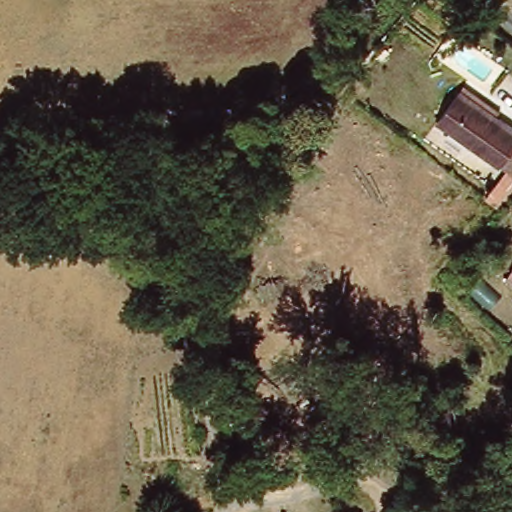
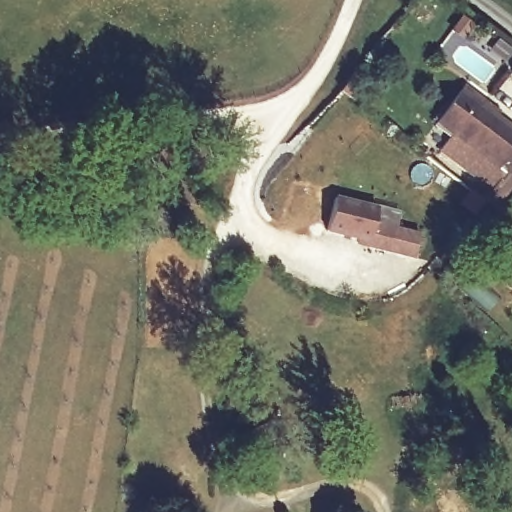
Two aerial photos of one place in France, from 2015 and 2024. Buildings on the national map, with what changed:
unchanged [(439,126),(467,87),(479,98),(475,103),(512,132),(512,157),(501,172),(439,126)]
unchanged [(480,200),(501,172),(512,157),(512,195),(497,212),(480,200)]
new [(335,194),(402,209),(399,225),(424,229),(418,258),(355,243),(356,239),(326,231),(335,194)]
unchanged [(512,263),(512,282),(504,277),(512,263)]

